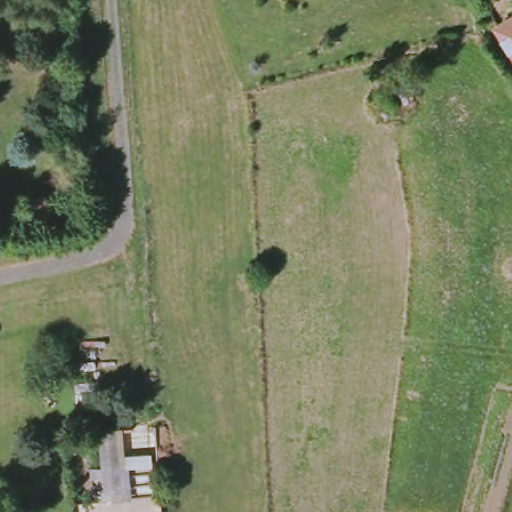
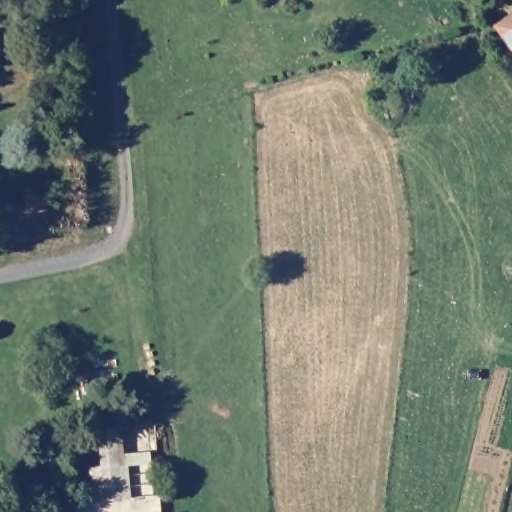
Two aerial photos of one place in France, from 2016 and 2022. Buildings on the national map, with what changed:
unchanged [(499,32),(512,25),(512,55),(499,32)]
unchanged [(120,487),(103,488),(98,433),(112,432),(120,487)]

